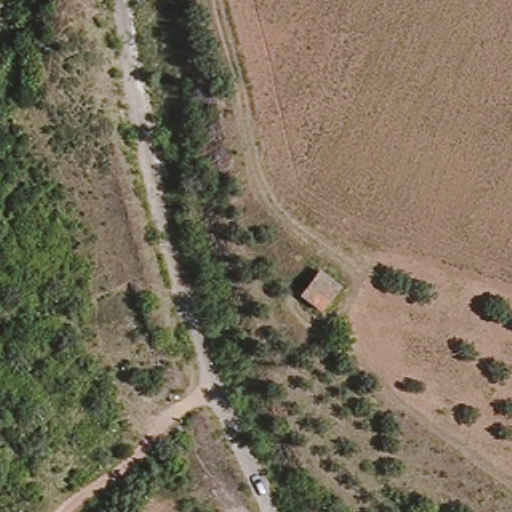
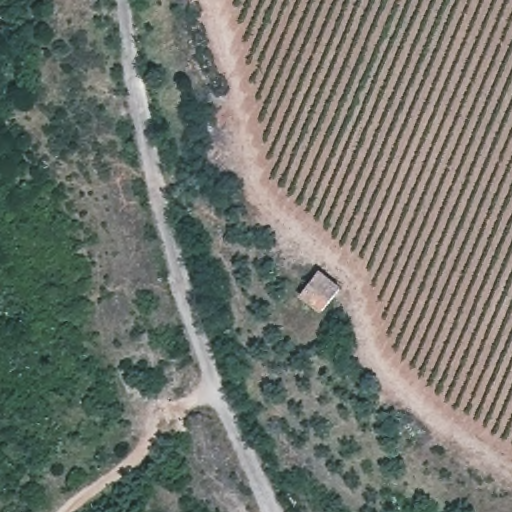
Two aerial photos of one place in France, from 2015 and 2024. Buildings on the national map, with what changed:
unchanged [(51,0),(57,0),(56,1),(51,0)]
unchanged [(339,285),(325,310),(302,295),(316,271),(339,285)]

